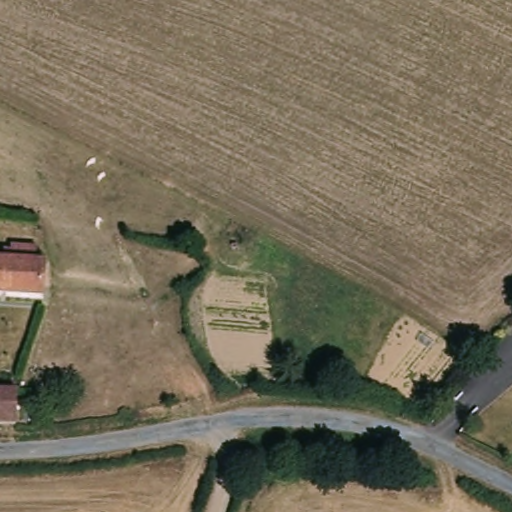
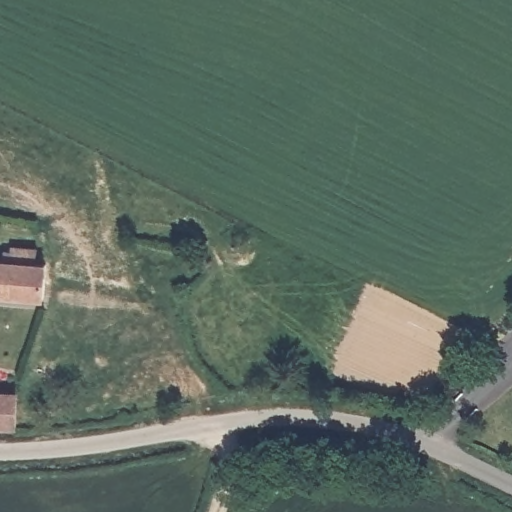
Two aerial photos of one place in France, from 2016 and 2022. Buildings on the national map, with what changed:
unchanged [(0,294),(0,256),(8,256),(9,245),(47,249),(45,259),(59,260),(55,298),(0,294)]
unchanged [(0,426),(0,393),(17,393),(13,426),(0,426)]

